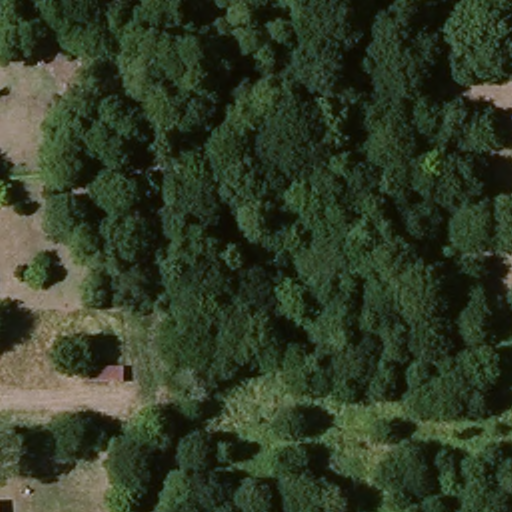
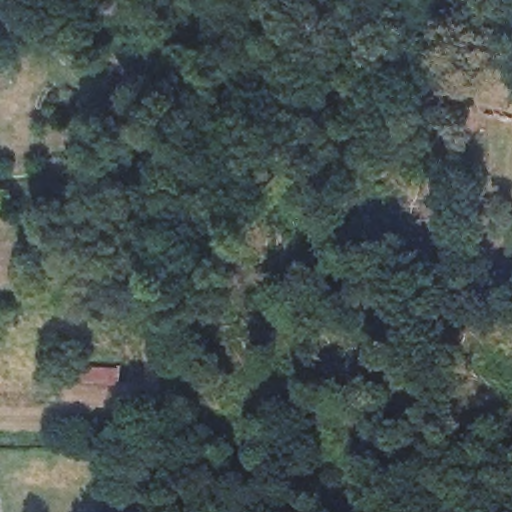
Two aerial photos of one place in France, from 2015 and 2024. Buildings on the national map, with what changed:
[]

